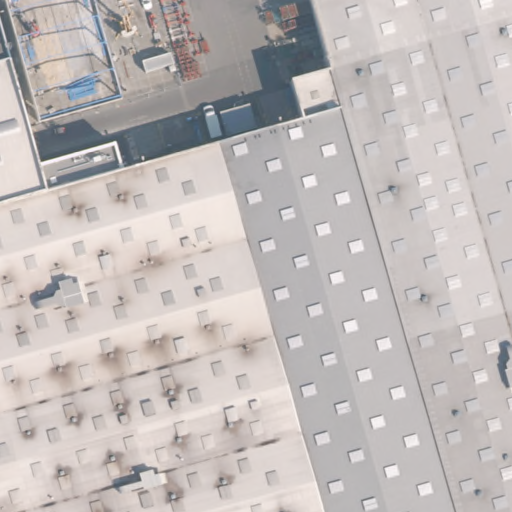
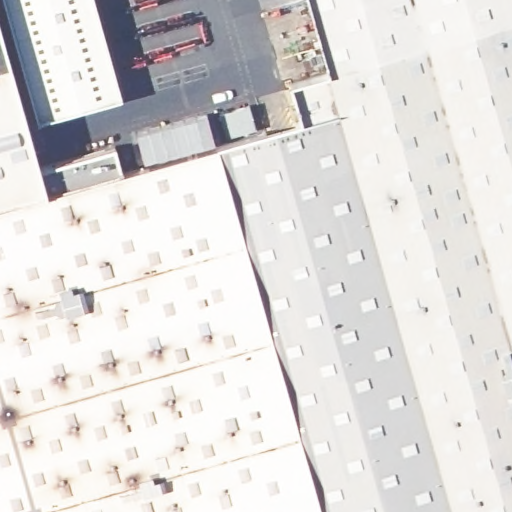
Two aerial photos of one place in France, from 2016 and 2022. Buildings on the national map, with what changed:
unchanged [(334,105),(305,0),(512,0),(512,512),(0,512),(0,50),(41,190),(334,105)]
new [(4,0),(94,0),(121,97),(37,122),(4,0)]

